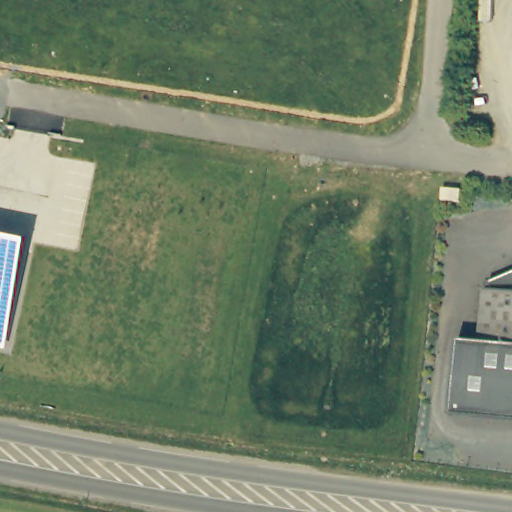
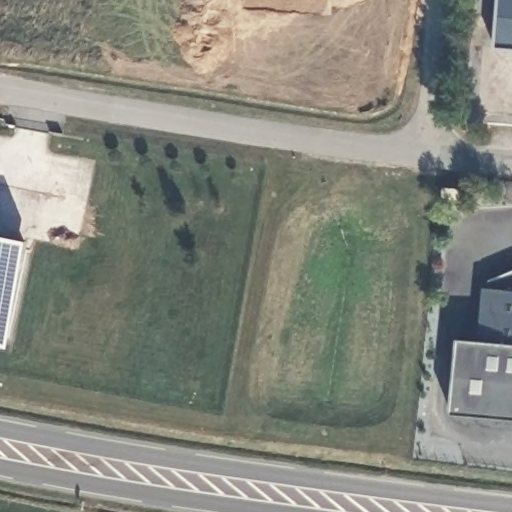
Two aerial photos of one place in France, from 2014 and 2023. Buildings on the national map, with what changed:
new [(500,0),(512,0),(512,50),(497,49),(500,0)]
unchanged [(27,241),(4,351),(0,350),(0,236),(27,241)]
unchanged [(455,337),(477,338),(480,286),(512,288),(512,416),(450,411),(455,337)]

